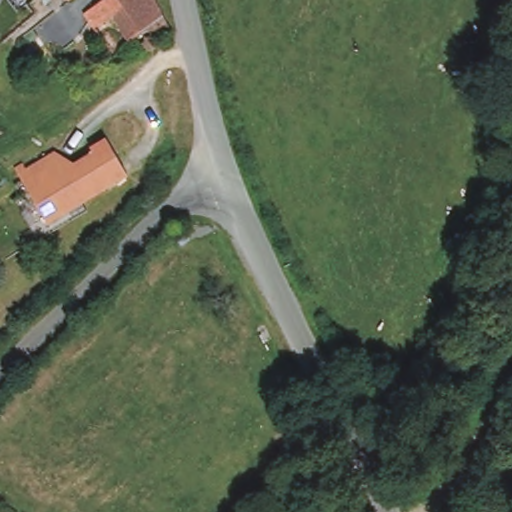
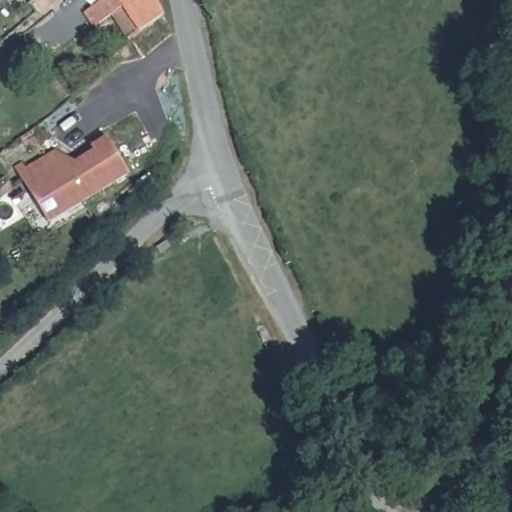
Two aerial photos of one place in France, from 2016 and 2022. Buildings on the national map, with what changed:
unchanged [(33,0),(42,0),(37,5),(33,0)]
unchanged [(63,0),(74,0),(66,5),(63,0)]
unchanged [(147,0),(159,19),(134,35),(119,10),(91,35),(83,22),(81,19),(104,0),(147,0)]
unchanged [(172,38),(162,45),(141,63),(129,49),(124,42),(134,35),(159,19),(172,38)]
unchanged [(75,165),(90,156),(91,150),(109,141),(129,179),(47,225),(18,173),(54,154),(75,165)]

